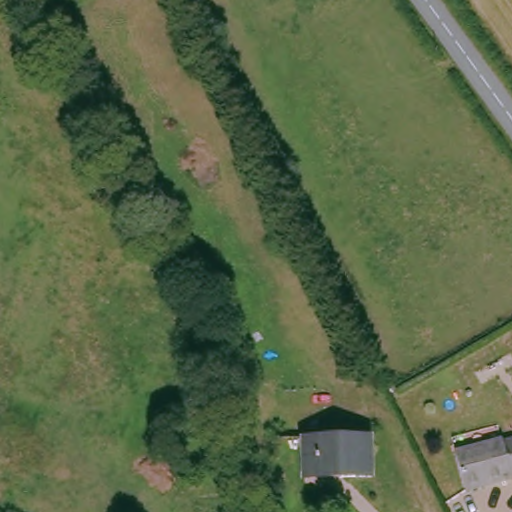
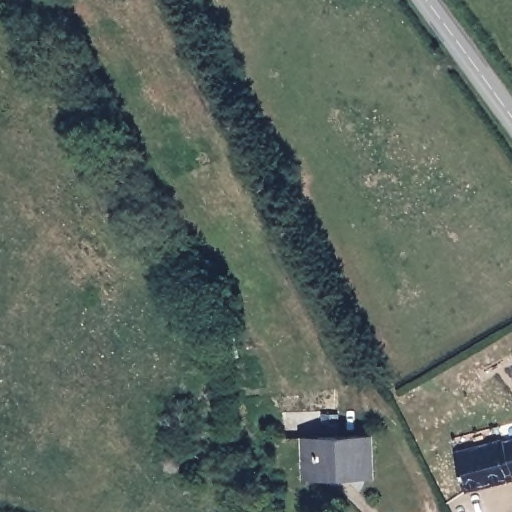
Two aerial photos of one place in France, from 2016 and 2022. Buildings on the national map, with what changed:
unchanged [(460,444),(507,430),(508,434),(512,433),(512,472),(494,477),(469,484),(467,477),(460,444)]
unchanged [(302,434),(318,434),(370,434),(371,474),(340,474),(302,475),(302,434)]

